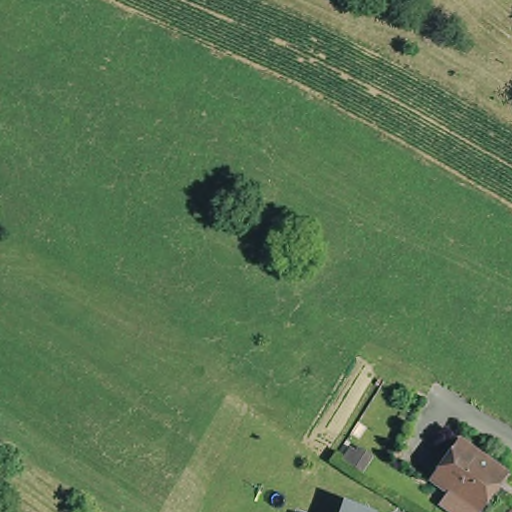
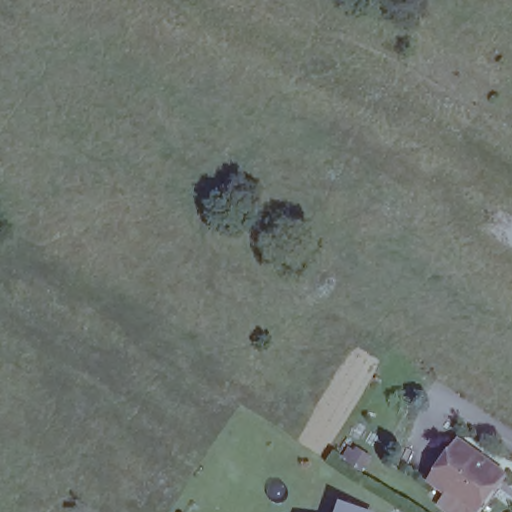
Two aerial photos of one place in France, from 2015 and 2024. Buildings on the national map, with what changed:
unchanged [(446,504),(455,492),(437,480),(465,440),(510,472),(483,511),(482,512),(458,512),(446,504)]
unchanged [(338,500),(374,512),(334,512),(338,500)]

